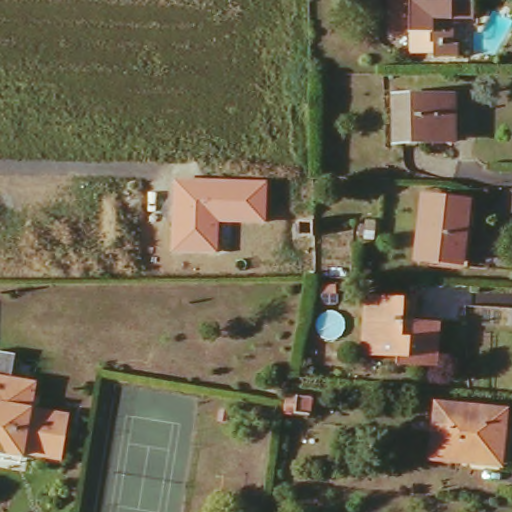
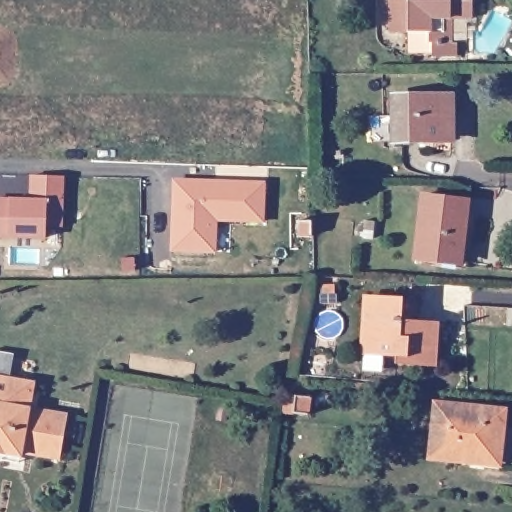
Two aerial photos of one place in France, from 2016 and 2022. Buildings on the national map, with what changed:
unchanged [(432,56),(432,41),(428,41),(428,30),(390,30),(390,0),(472,0),(472,16),(452,16),(452,41),(455,41),(455,56),(432,56)]
unchanged [(403,98),(461,96),(462,141),(403,142),(403,98)]
new [(32,177),(62,178),(61,203),(60,228),(45,228),(45,239),(0,237),(0,200),(31,201),(32,177)]
unchanged [(267,182),(265,224),(218,223),(217,254),(171,255),(174,180),(267,182)]
unchanged [(422,199),(467,203),(461,266),(417,262),(422,199)]
unchanged [(325,290),(333,290),(332,306),(324,306),(325,290)]
unchanged [(362,298),(395,299),(396,319),(403,319),(404,324),(413,324),(427,325),(427,364),(394,362),(393,356),(360,355),(362,298)]
unchanged [(0,348),(10,350),(7,375),(31,379),(27,404),(65,411),(57,454),(19,447),(18,451),(17,458),(0,455),(0,348)]
unchanged [(433,407),(505,415),(500,463),(455,458),(455,468),(427,465),(433,407)]

